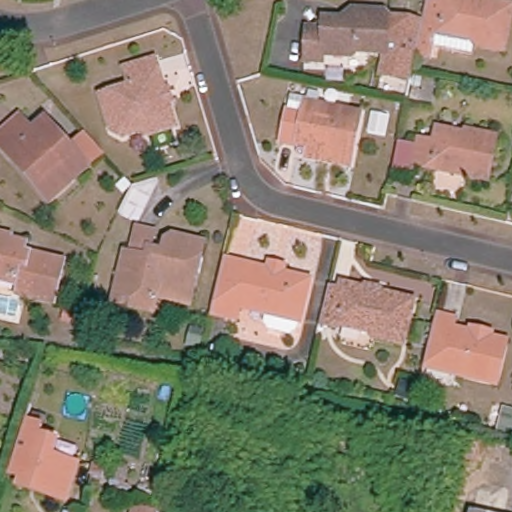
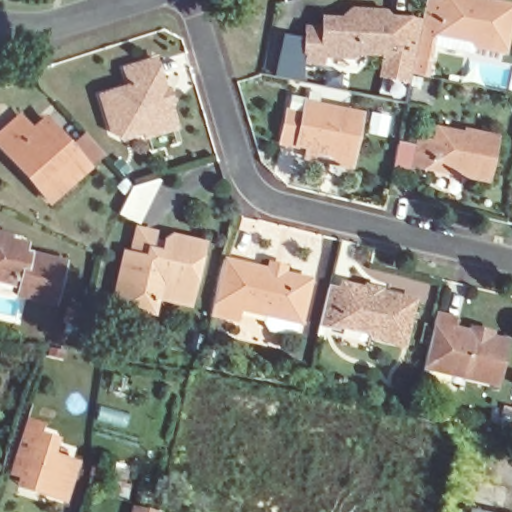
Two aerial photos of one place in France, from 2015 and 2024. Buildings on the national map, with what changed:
unchanged [(437,65),(422,61),(427,31),(432,9),(446,11),(447,2),(481,7),(480,14),(497,16),(497,9),(512,11),(512,31),(507,56),(478,51),(477,61),(438,56),(437,65)]
unchanged [(422,61),(416,91),(388,85),(393,64),(364,63),(362,66),(330,65),(330,70),(328,71),(311,70),(312,38),(327,38),(330,27),(353,28),(365,20),(391,21),(396,29),(412,28),(427,31),(422,61)]
unchanged [(127,88),(122,71),(154,61),(175,128),(143,139),(141,133),(125,139),(108,131),(99,98),(127,88)]
unchanged [(347,166),(302,155),(292,152),(291,156),(276,151),(285,119),(289,103),(305,106),(304,111),(357,126),(347,166)]
unchanged [(16,153),(43,186),(35,192),(0,154),(0,141),(19,124),(32,138),(16,153)]
unchanged [(71,153),(85,140),(95,151),(102,159),(87,172),(88,173),(49,209),(35,192),(43,186),(16,153),(32,138),(46,126),(71,153)]
unchanged [(430,143),(445,144),(447,133),(474,138),(476,134),(507,140),(500,184),(482,181),(481,175),(470,173),(468,178),(424,170),(430,143)]
unchanged [(427,145),(420,174),(403,171),(410,141),(427,145)]
unchanged [(134,189),(156,182),(135,224),(120,216),(134,189)]
unchanged [(5,236),(5,241),(21,245),(21,252),(58,260),(49,299),(17,293),(18,286),(0,281),(0,235),(5,236)]
unchanged [(115,299),(121,263),(126,264),(132,235),(149,237),(145,258),(162,261),(167,242),(202,248),(199,267),(204,268),(201,282),(196,281),(193,297),(171,293),(172,288),(157,286),(150,319),(127,315),(112,313),(115,299)]
unchanged [(291,330),(270,327),(264,319),(266,311),(240,306),(239,317),(236,318),(214,313),(225,257),(242,260),(244,265),(262,268),(267,268),(269,261),(285,264),(284,272),(307,276),(300,317),(298,325),(291,330)]
unchanged [(329,289),(346,293),(348,286),(363,290),(365,285),(384,289),(382,302),(390,304),(397,302),(405,298),(415,301),(403,344),(372,337),(372,333),(340,325),(338,329),(321,325),(329,289)]
unchanged [(435,315),(452,319),(451,331),(474,336),(473,341),(485,343),(487,339),(508,344),(497,387),(422,370),(435,315)]
unchanged [(2,474),(17,425),(37,431),(34,442),(49,446),(45,462),(72,470),(61,506),(29,497),(10,492),(14,479),(2,474)]
unchanged [(129,506),(154,511),(154,512),(127,512),(129,506)]

